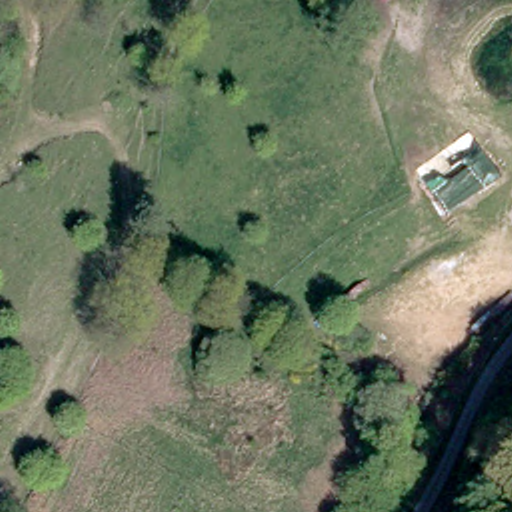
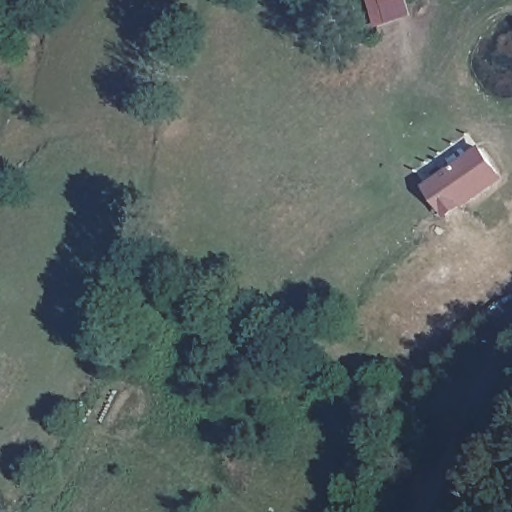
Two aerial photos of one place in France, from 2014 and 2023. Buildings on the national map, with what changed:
new [(375,27),(367,0),(405,0),(410,15),(375,27)]
new [(480,145),(504,177),(445,219),(424,186),(480,145)]

